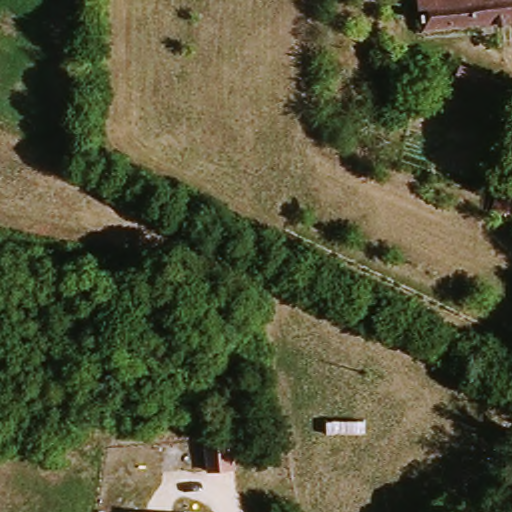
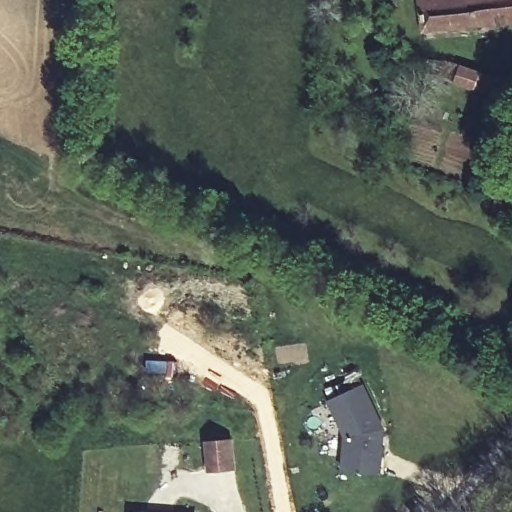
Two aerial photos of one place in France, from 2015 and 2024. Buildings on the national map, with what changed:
unchanged [(418,32),(413,0),(512,0),(512,16),(418,32)]
unchanged [(443,75),(449,57),(512,72),(512,92),(443,75)]
new [(503,169),(512,172),(512,219),(490,212),(503,169)]
new [(367,385),(387,430),(382,474),(342,471),(347,437),(328,401),(367,385)]
unchanged [(204,442),(230,439),(234,468),(208,470),(204,442)]

